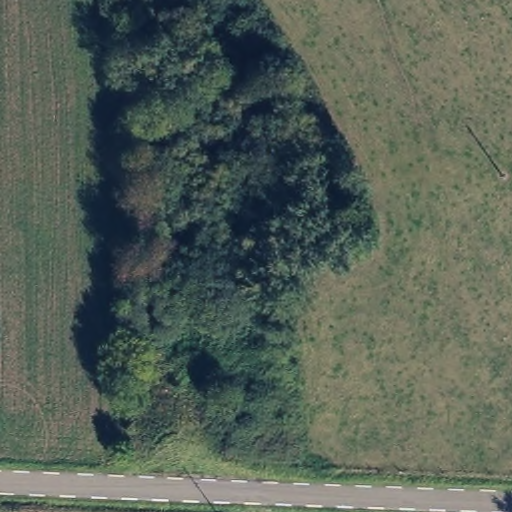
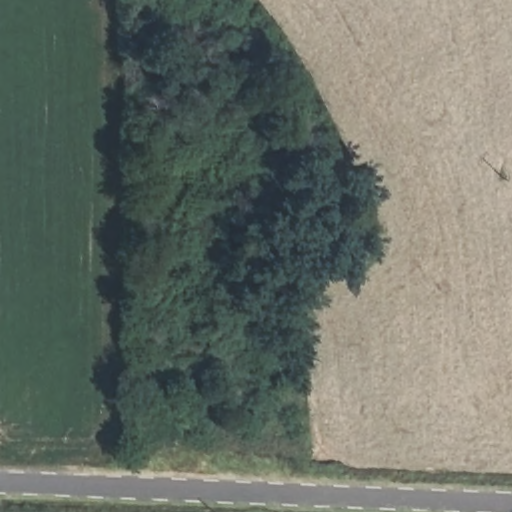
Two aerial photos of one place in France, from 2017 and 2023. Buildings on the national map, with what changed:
unchanged [(133,427),(136,354),(159,354),(157,427),(133,427)]

